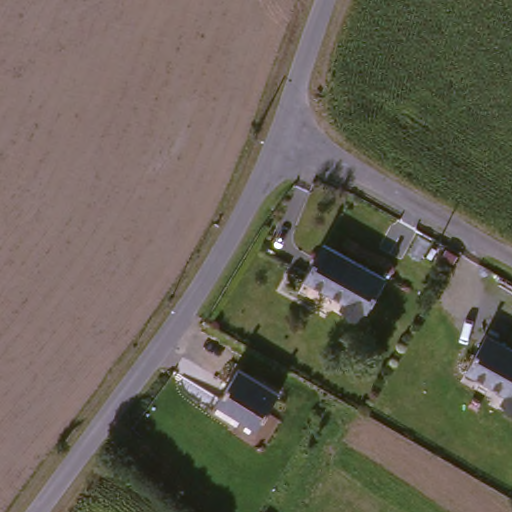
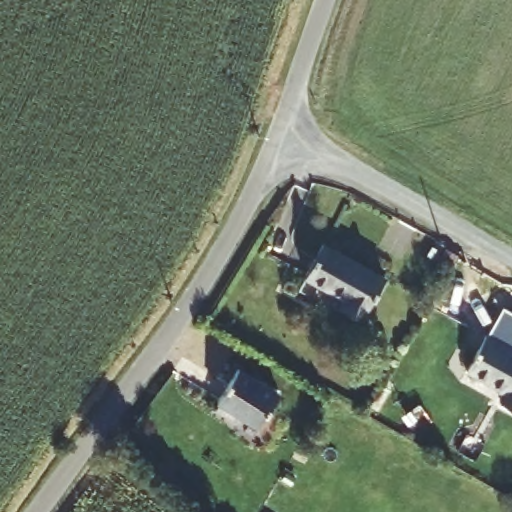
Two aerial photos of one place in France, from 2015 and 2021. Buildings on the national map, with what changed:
unchanged [(322,247),(382,282),(354,326),(335,314),(339,305),(304,284),(322,247)]
unchanged [(512,414),(500,407),(506,394),(471,372),(489,344),(512,357),(512,414)]
unchanged [(234,377),(274,401),(254,435),(214,411),(234,377)]

